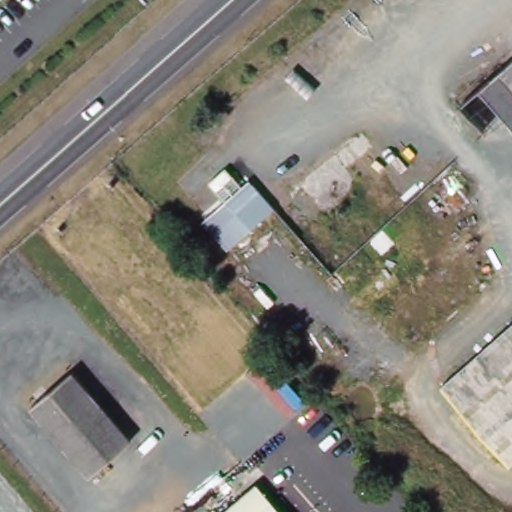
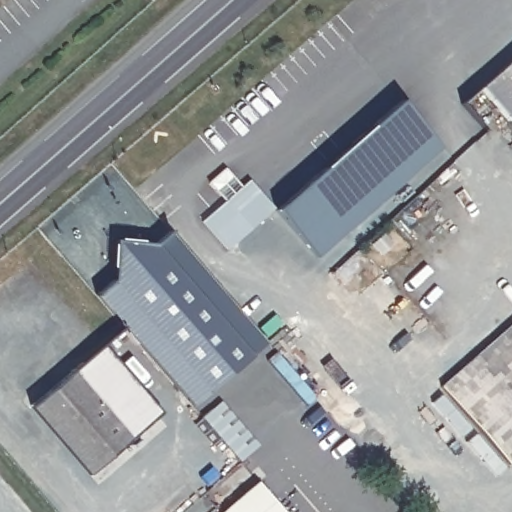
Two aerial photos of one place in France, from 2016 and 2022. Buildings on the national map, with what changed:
unchanged [(512,123),(479,85),(512,57),(512,123)]
new [(402,105),(425,131),(395,158),(413,178),(318,261),(277,214),(402,105)]
new [(425,131),(443,152),(413,178),(395,158),(425,131)]
unchanged [(227,197),(231,201),(255,182),(274,205),(227,245),(204,219),(227,197)]
new [(169,232),(267,345),(251,360),(152,247),(169,232)]
new [(113,245),(152,247),(251,360),(209,396),(111,283),(113,245)]
new [(111,283),(209,396),(192,410),(94,297),(111,283)]
unchanged [(445,384),(512,325),(512,460),(511,461),(445,384)]
unchanged [(72,368),(131,437),(92,472),(31,403),(72,368)]
unchanged [(284,512),(223,512),(257,481),(284,512)]

